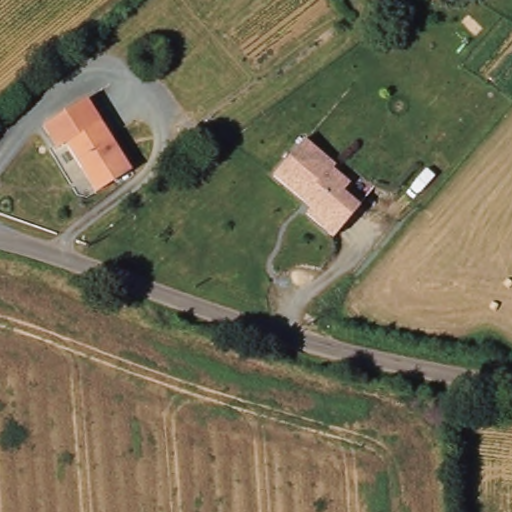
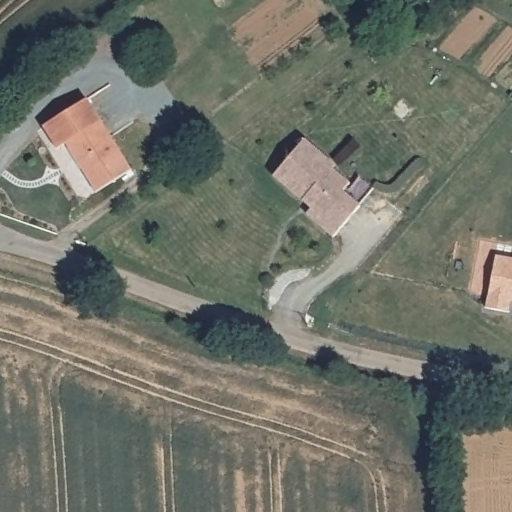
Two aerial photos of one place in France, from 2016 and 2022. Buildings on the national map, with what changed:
unchanged [(131,170),(96,192),(64,143),(56,148),(42,125),(86,98),(100,120),(131,170)]
unchanged [(303,140),(314,150),(333,166),(331,169),(347,184),(356,173),(373,188),(358,205),(359,206),(332,237),(305,214),(310,209),(273,178),(272,177),(303,140)]
new [(512,259),(512,302),(509,302),(507,312),(485,308),(495,255),(512,259)]

